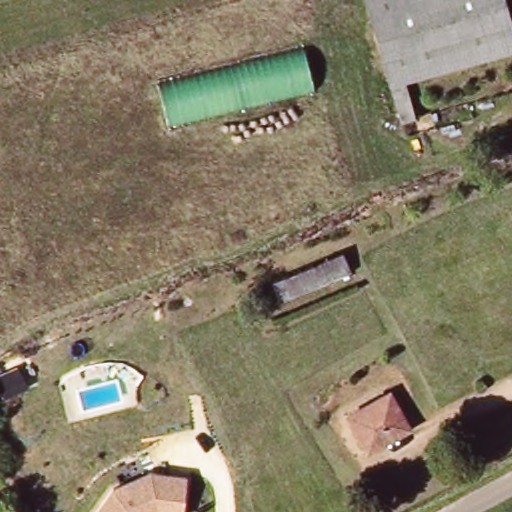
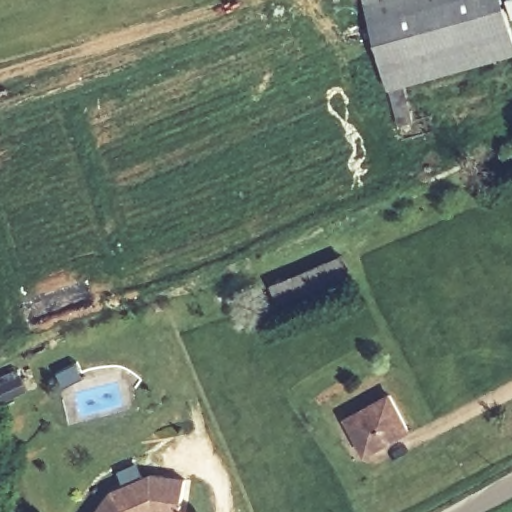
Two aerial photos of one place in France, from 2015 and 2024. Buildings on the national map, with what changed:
unchanged [(392,81),(370,0),(501,0),(512,45),(512,49),(392,81)]
unchanged [(402,126),(395,89),(392,81),(512,49),(512,58),(410,85),(418,121),(402,126)]
demolished [(162,89),(308,53),(317,93),(174,129),(162,89)]
unchanged [(271,282),(344,252),(354,276),(283,307),(271,282)]
unchanged [(415,430),(373,454),(355,421),(396,398),(415,430)]
unchanged [(96,512),(110,493),(147,476),(182,479),(179,512),(96,512)]

